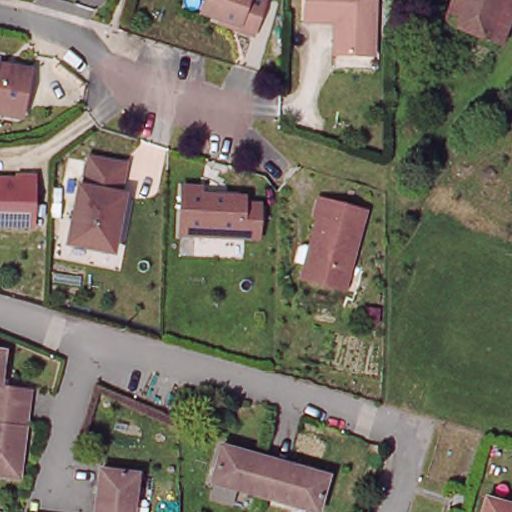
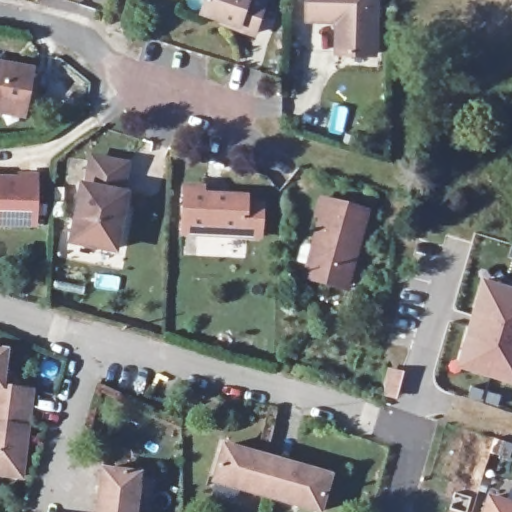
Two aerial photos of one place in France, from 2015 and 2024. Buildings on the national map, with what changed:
unchanged [(208,13),(213,0),(272,0),(261,34),(245,29),(228,24),(230,20),(208,13)]
unchanged [(313,18),(314,0),(384,0),(382,53),(355,52),(343,52),(345,19),(313,18)]
unchanged [(506,53),(457,28),(469,0),(512,0),(512,11),(506,25),(512,28),(512,41),(506,53)]
unchanged [(0,113),(0,65),(34,70),(30,104),(28,116),(2,113),(0,113)]
unchanged [(118,251),(68,243),(79,179),(88,181),(94,155),(133,159),(118,251)]
unchanged [(21,174),(38,174),(39,222),(0,223),(0,178),(21,177),(21,174)]
unchanged [(187,185),(205,186),(205,193),(249,195),(249,201),(265,202),(265,234),(186,231),(187,185)]
unchanged [(348,287),(311,278),(327,218),(322,217),(326,200),(373,212),(359,270),(354,289),(348,287)]
new [(482,275),(512,284),(512,380),(458,364),(482,275)]
unchanged [(18,480),(0,477),(0,352),(7,353),(1,388),(32,393),(31,401),(27,426),(18,480)]
unchanged [(291,467),(327,480),(316,512),(306,512),(271,500),(212,479),(225,443),(266,458),(291,467)]
unchanged [(103,467),(142,473),(137,512),(96,512),(103,467)]
unchanged [(482,496),(512,502),(512,512),(478,512),(482,496)]

